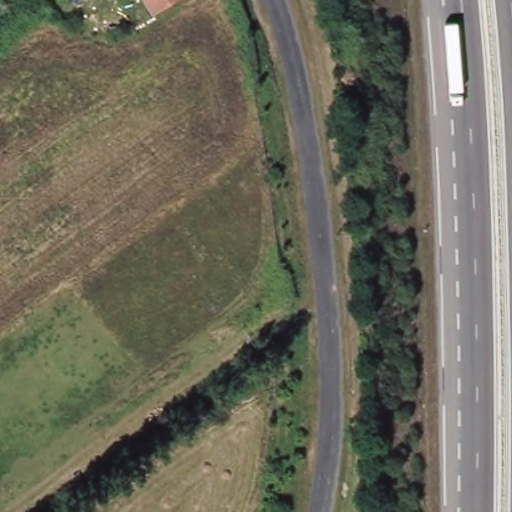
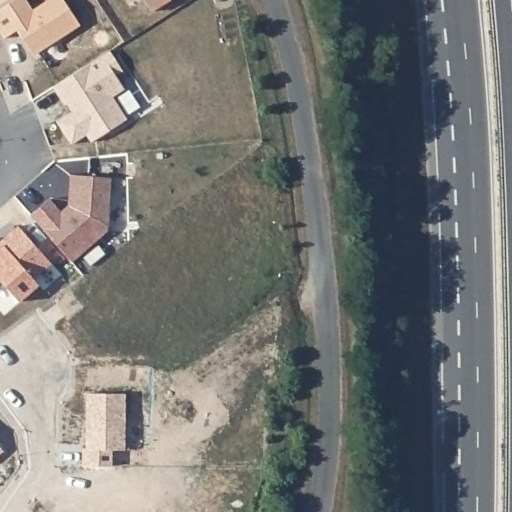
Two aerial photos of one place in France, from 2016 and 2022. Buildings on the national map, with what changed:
new [(32,56),(17,30),(5,38),(0,30),(0,8),(13,0),(28,0),(33,8),(46,0),(65,0),(81,25),(32,56)]
unchanged [(153,11),(145,0),(171,0),(153,11)]
new [(123,70),(115,76),(124,90),(112,98),(126,120),(91,144),(85,135),(72,145),(55,122),(70,111),(53,88),(110,50),(123,70)]
new [(62,211),(69,206),(70,177),(111,179),(107,232),(73,262),(31,215),(51,199),(62,211)]
new [(35,280),(40,285),(20,302),(3,280),(0,282),(0,243),(20,226),(52,265),(35,280)]

